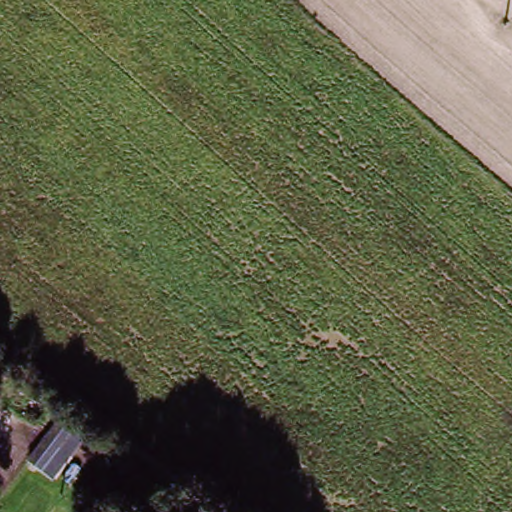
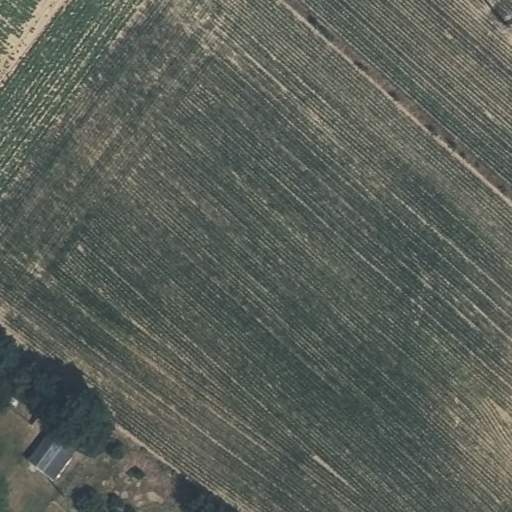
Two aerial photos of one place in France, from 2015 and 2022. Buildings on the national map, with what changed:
unchanged [(26,459),(59,415),(85,435),(52,480),(26,459)]

